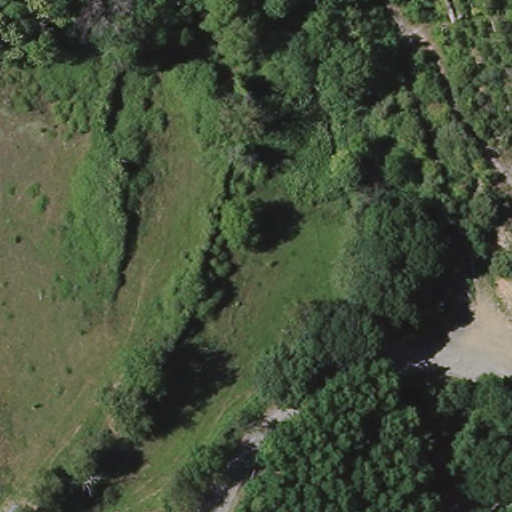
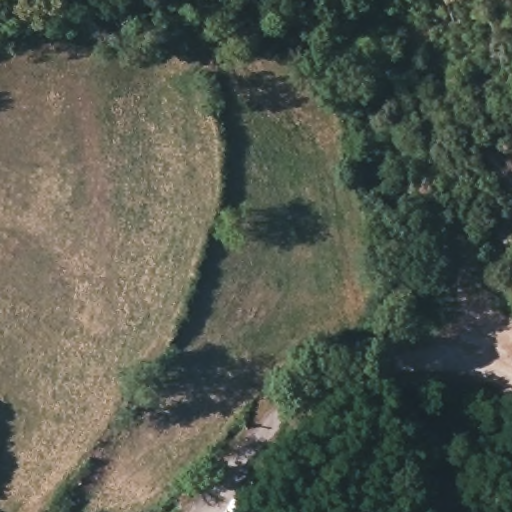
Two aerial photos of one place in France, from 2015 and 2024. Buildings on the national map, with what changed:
unchanged [(361,328),(363,341),(346,345),(342,332),(361,328)]

